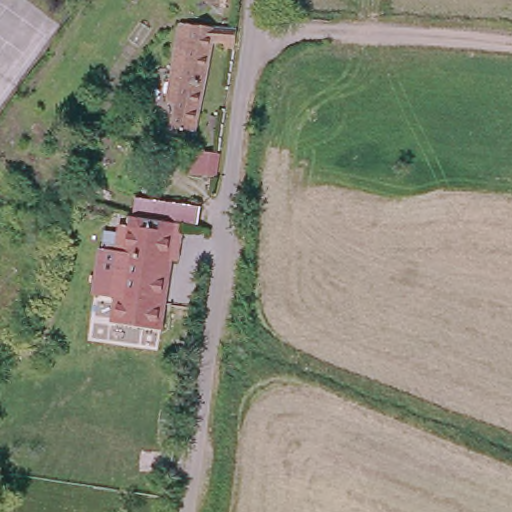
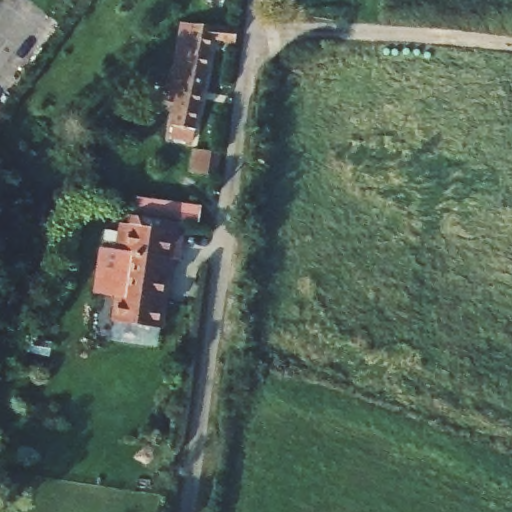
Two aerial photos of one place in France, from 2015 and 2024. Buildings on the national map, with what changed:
unchanged [(231,24),(230,45),(219,43),(219,37),(202,37),(185,138),(166,135),(172,96),(158,95),(170,18),(231,24)]
unchanged [(185,169),(188,146),(215,150),(213,174),(185,169)]
unchanged [(132,192),(197,196),(195,218),(130,211),(132,192)]
unchanged [(180,234),(178,260),(171,260),(161,328),(113,323),(120,263),(113,247),(115,228),(180,234)]

